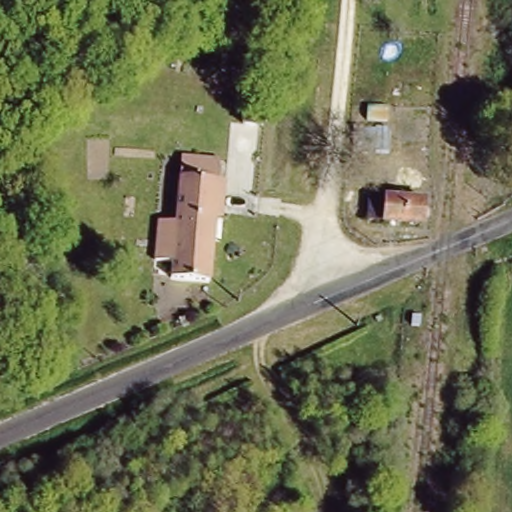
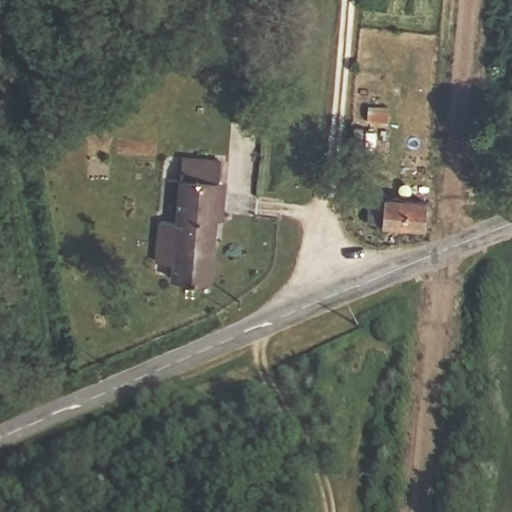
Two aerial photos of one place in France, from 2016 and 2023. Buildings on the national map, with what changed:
unchanged [(237,87),(265,89),(263,125),(234,125),(236,101),(237,87)]
unchanged [(182,150),(219,153),(209,281),(177,278),(175,267),(162,268),(164,228),(180,228),(182,156),(182,150)]
unchanged [(431,220),(380,218),(382,191),(432,193),(431,220)]

